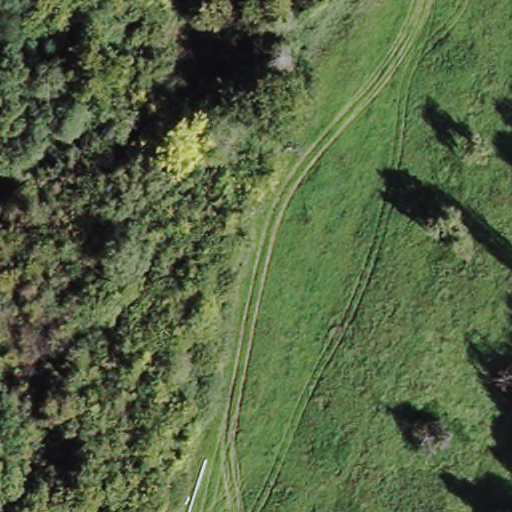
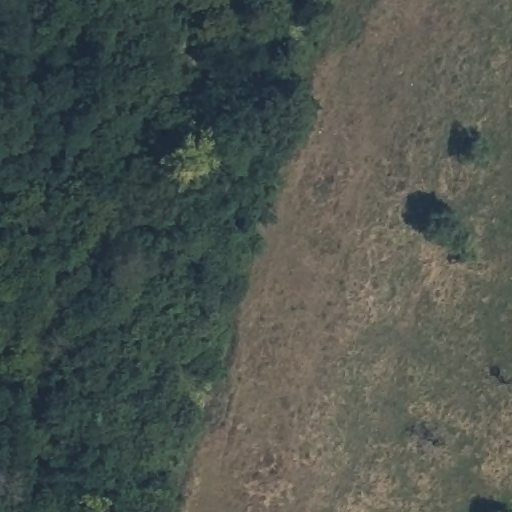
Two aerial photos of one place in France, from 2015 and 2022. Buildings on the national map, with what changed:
[]

